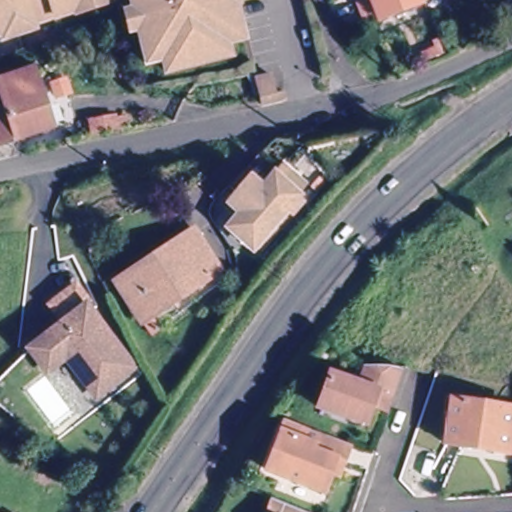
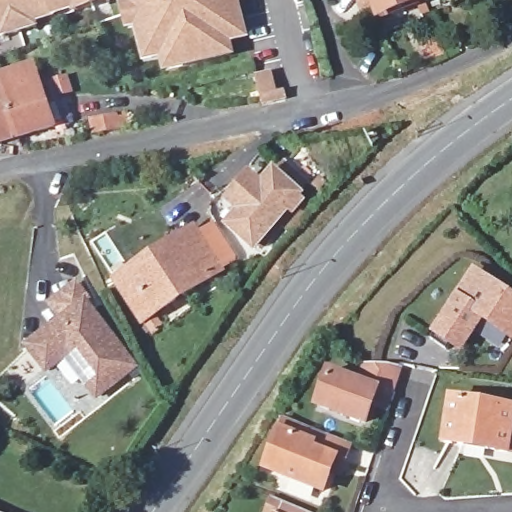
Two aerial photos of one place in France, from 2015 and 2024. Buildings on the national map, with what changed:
unchanged [(83,13),(81,8),(38,23),(40,28),(9,39),(7,34),(0,36),(0,0),(113,0),(113,1),(83,13)]
unchanged [(251,38),(235,41),(238,55),(174,72),(171,59),(154,63),(137,0),(242,0),(243,4),(251,38)]
unchanged [(412,0),(416,11),(372,29),(361,0),(412,0)]
unchanged [(0,109),(19,102),(15,90),(9,73),(32,65),(38,82),(52,121),(0,140),(0,109)]
unchanged [(239,210),(243,205),(237,201),(256,176),(268,185),(280,170),(305,189),(263,244),(238,225),(245,215),(239,210)]
unchanged [(118,283),(129,275),(176,242),(178,245),(194,234),(219,269),(156,314),(145,321),(118,283)]
new [(466,271),(474,276),(512,301),(512,332),(508,337),(474,314),(456,342),(445,335),(437,347),(422,337),(449,296),(466,271)]
unchanged [(81,309),(128,370),(91,398),(61,359),(42,373),(26,352),(81,309)]
unchanged [(391,410),(383,407),(377,425),(320,407),(331,372),(363,383),(370,363),(406,367),(395,400),(391,410)]
unchanged [(509,452),(497,451),(479,448),(479,444),(457,441),(457,445),(437,442),(443,398),(503,406),(501,427),(512,429),(512,433),(509,452)]
unchanged [(319,475),(311,496),(268,481),(281,443),(287,427),(299,432),(339,446),(332,464),(327,478),(319,475)]
unchanged [(264,504),(286,512),(262,512),(264,504)]

